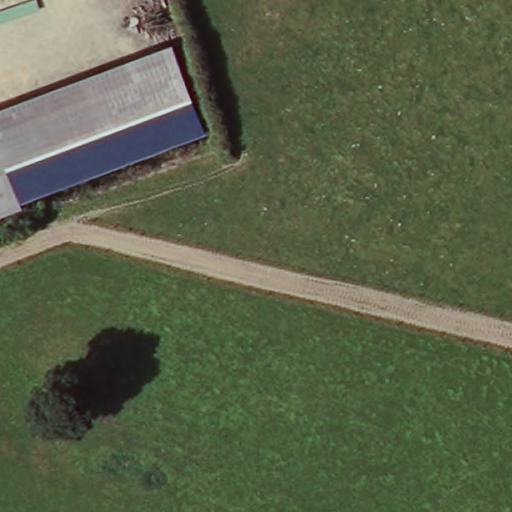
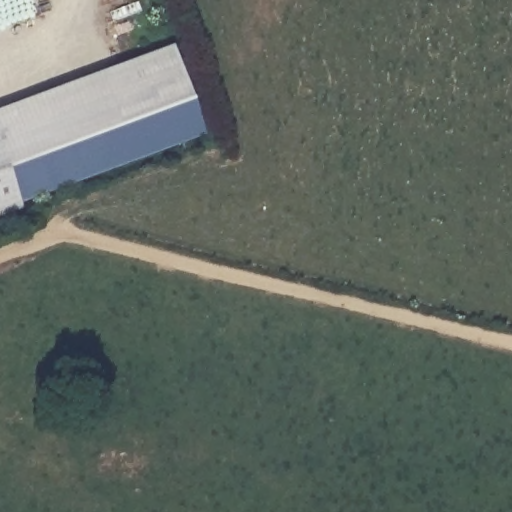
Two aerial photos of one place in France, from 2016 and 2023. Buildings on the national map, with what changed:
unchanged [(22,205),(23,210),(0,219),(0,107),(172,44),(207,134),(22,205)]

